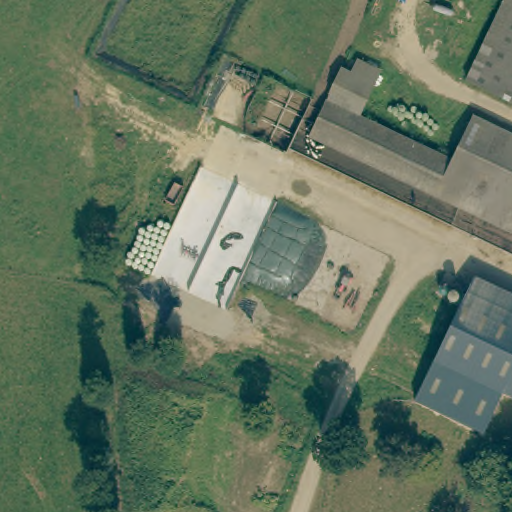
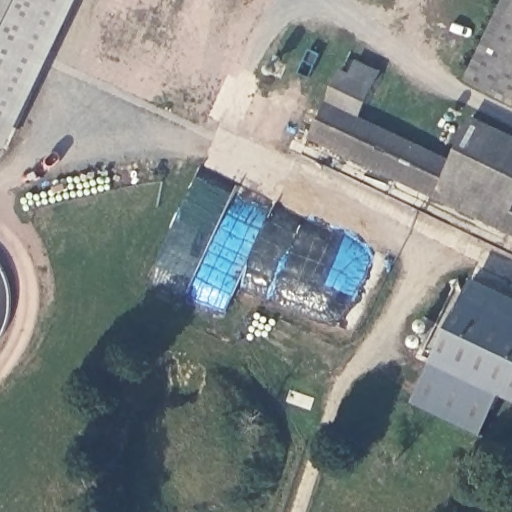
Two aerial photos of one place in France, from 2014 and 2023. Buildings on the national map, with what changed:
new [(0,147),(0,0),(80,0),(7,151),(0,147)]
unchanged [(512,0),(512,22),(499,16),(507,0),(512,0)]
unchanged [(512,22),(512,101),(468,80),(499,16),(512,22)]
unchanged [(361,121),(451,162),(472,118),(512,137),(512,235),(305,137),(337,72),(350,77),(356,64),(384,76),(361,121)]
unchanged [(475,277),(512,295),(512,398),(503,394),(485,434),(414,401),(475,277)]

